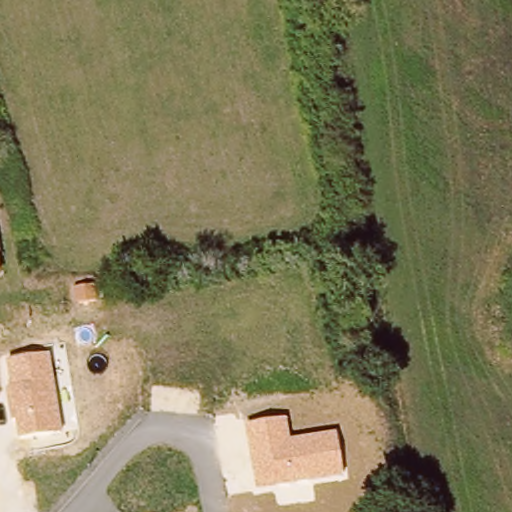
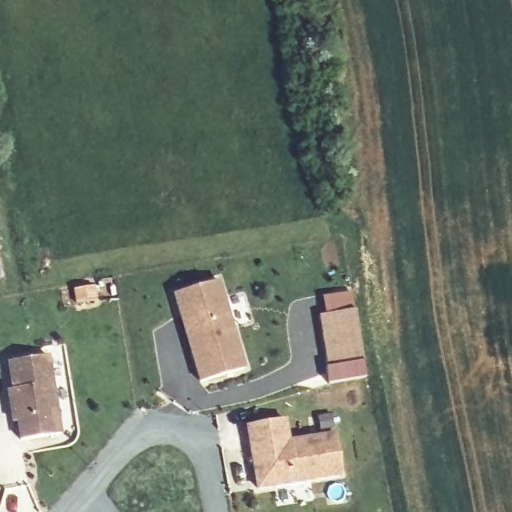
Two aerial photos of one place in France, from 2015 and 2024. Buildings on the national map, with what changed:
new [(247,367),(198,383),(172,294),(219,279),(247,367)]
new [(319,316),(325,315),(323,295),(352,290),(364,362),(327,369),(319,316)]
unchanged [(11,390),(8,362),(49,356),(61,434),(19,440),(16,422),(11,422),(6,391),(11,390)]
unchanged [(290,440),(336,433),(344,476),(256,490),(245,425),(287,419),(290,440)]

